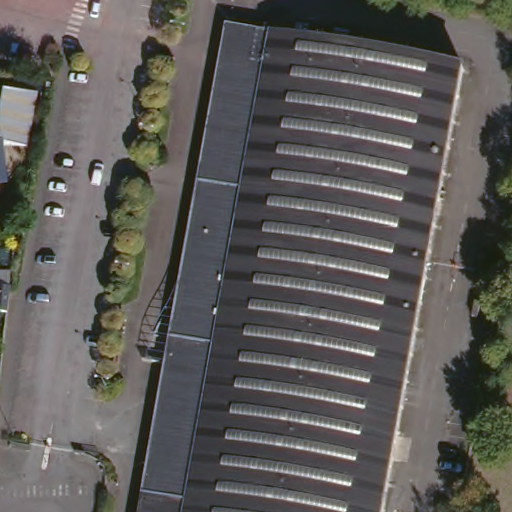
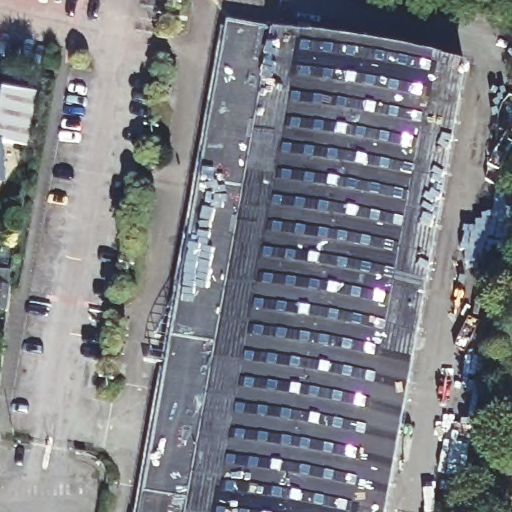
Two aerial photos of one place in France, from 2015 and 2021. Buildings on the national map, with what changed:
unchanged [(385,512),(142,512),(226,23),(464,66),(385,512)]
unchanged [(9,92),(44,94),(32,148),(8,143),(4,159),(8,162),(2,190),(0,190),(0,122),(2,122),(9,92)]

